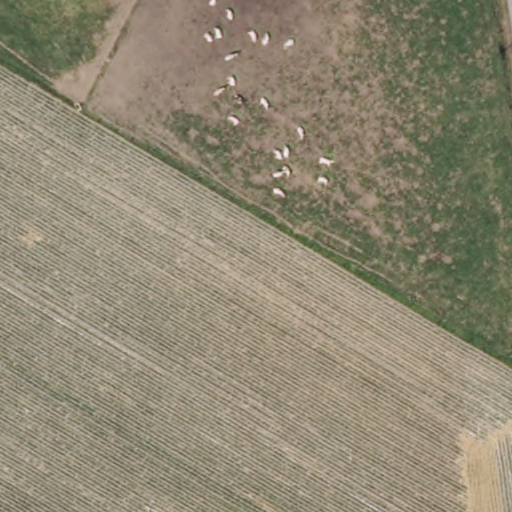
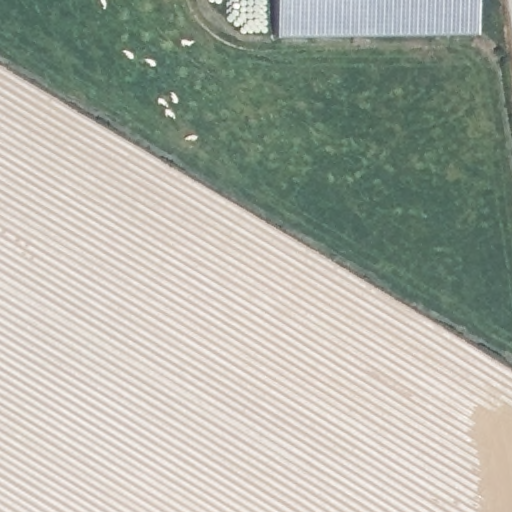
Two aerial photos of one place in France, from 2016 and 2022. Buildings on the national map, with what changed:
new [(272,39),(272,0),(473,0),(473,35),(272,39)]

